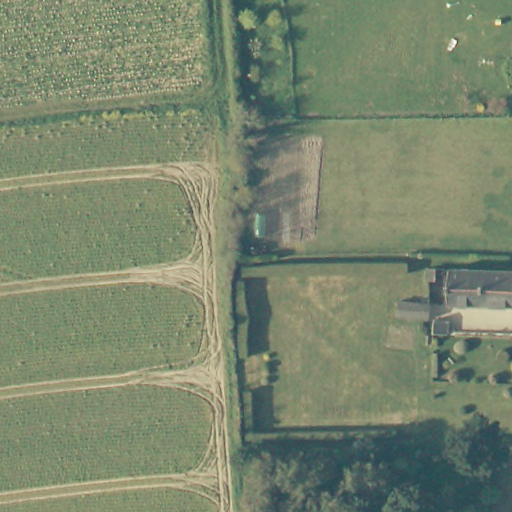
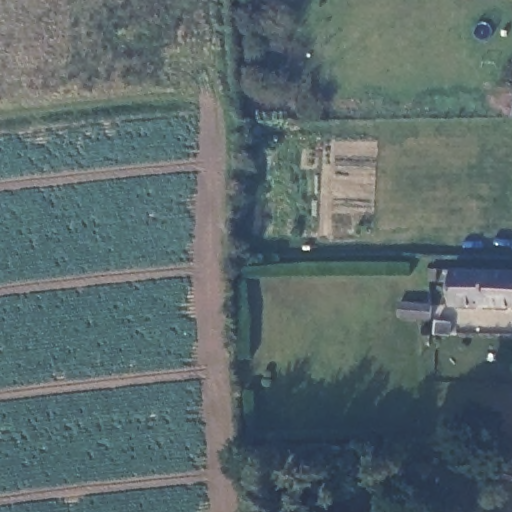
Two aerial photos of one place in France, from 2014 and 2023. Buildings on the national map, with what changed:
unchanged [(445,301),(446,265),(512,266),(512,302),(445,301)]
unchanged [(436,269),(436,282),(430,282),(428,282),(428,269),(436,269)]
unchanged [(398,318),(399,302),(429,303),(431,304),(430,320),(398,318)]
unchanged [(449,335),(436,334),(436,322),(450,322),(449,335)]

